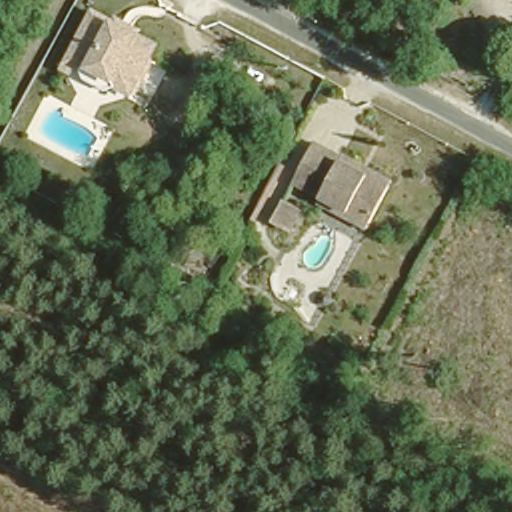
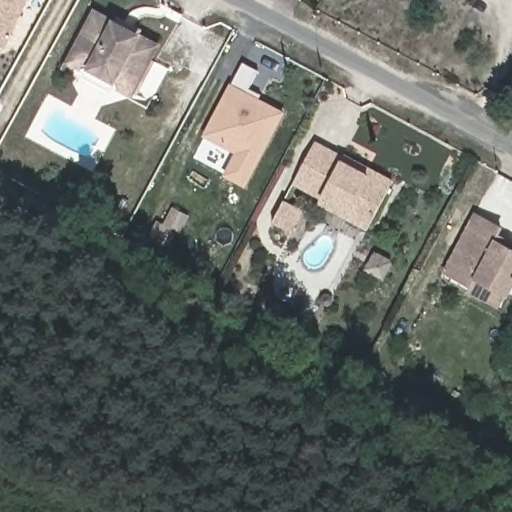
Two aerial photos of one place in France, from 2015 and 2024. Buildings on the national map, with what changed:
new [(0,41),(0,0),(21,0),(0,41)]
unchanged [(81,78),(77,67),(64,60),(89,11),(151,42),(145,57),(163,66),(145,101),(114,85),(104,90),(81,78)]
new [(201,136),(242,63),(256,70),(245,91),(284,111),(246,185),(222,173),(233,153),(201,136)]
unchanged [(309,206),(312,201),(283,187),(303,147),(332,161),(333,159),(351,168),(383,184),(380,190),(362,226),(359,232),(309,206)]
new [(162,224),(172,205),(189,215),(180,233),(172,229),(163,245),(147,236),(155,220),(162,224)]
unchanged [(293,215),(281,237),(262,227),(274,205),(293,215)]
new [(497,238),(512,246),(512,288),(508,295),(499,307),(467,290),(469,286),(441,271),(473,211),(502,227),(497,238)]

